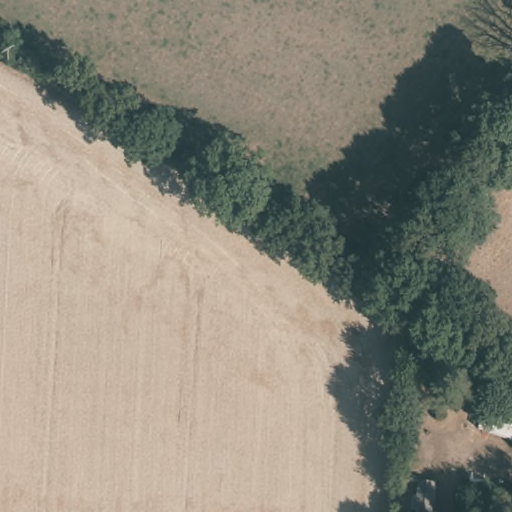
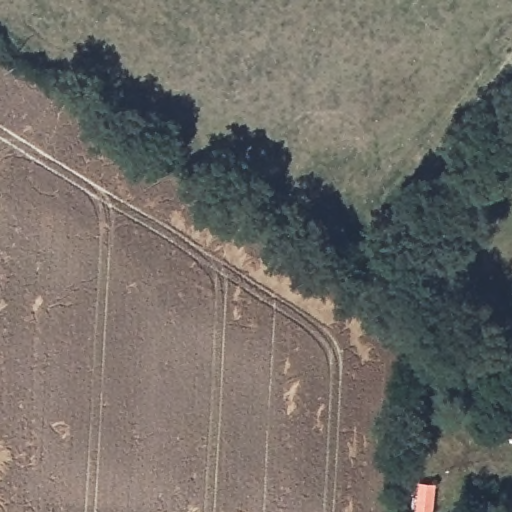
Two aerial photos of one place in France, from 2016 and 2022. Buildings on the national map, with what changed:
unchanged [(435,485),(432,512),(416,512),(418,483),(435,485)]

